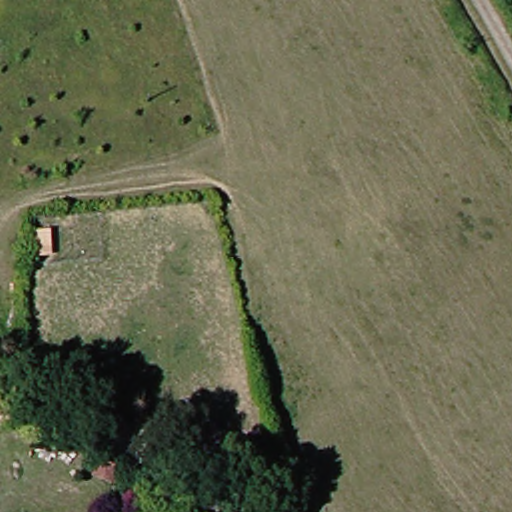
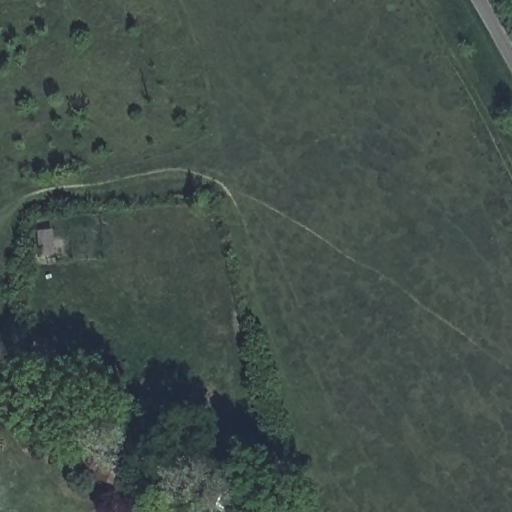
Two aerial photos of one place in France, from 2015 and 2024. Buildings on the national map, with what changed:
[]

